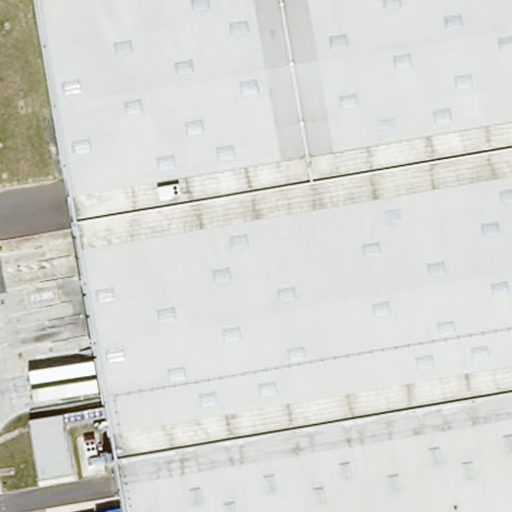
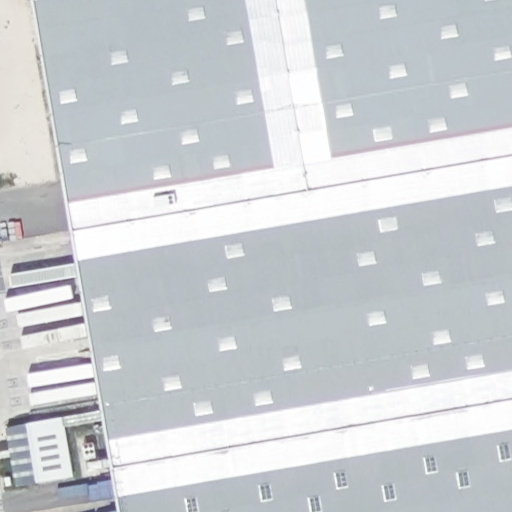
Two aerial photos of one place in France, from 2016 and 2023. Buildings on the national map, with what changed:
unchanged [(113,460),(34,0),(512,0),(512,392),(442,404),(113,460)]
unchanged [(442,404),(512,392),(512,512),(122,512),(113,460),(442,404)]

